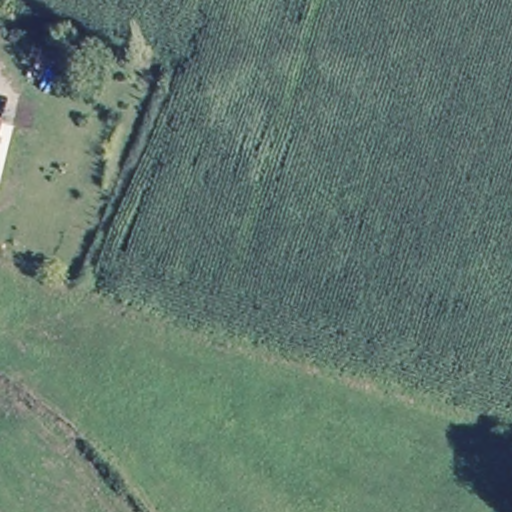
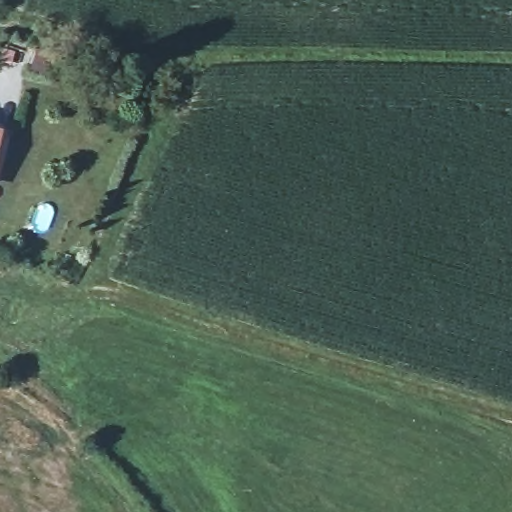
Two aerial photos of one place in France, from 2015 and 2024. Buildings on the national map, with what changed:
unchanged [(0,139),(0,127),(3,128),(0,139)]

